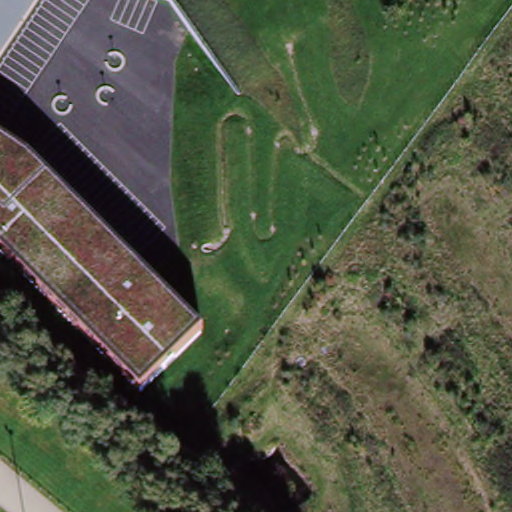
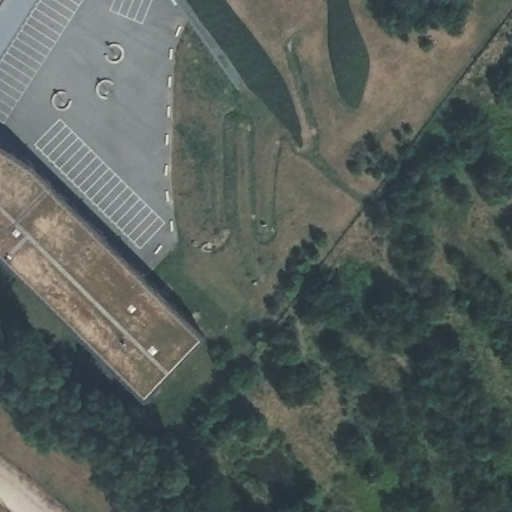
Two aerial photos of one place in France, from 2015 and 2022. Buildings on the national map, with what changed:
unchanged [(31,0),(0,50),(0,0),(31,0)]
unchanged [(31,160),(199,330),(138,392),(0,251),(0,127),(31,160)]

